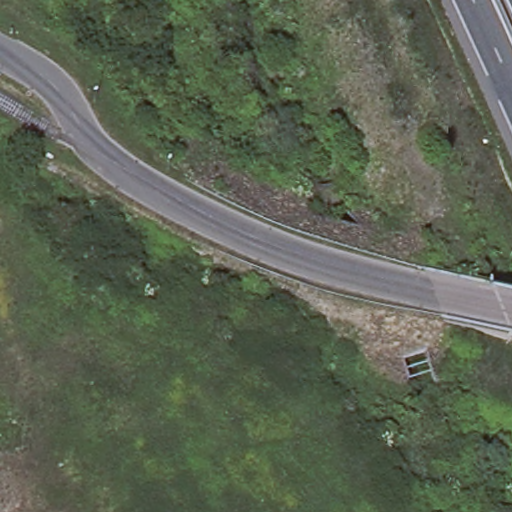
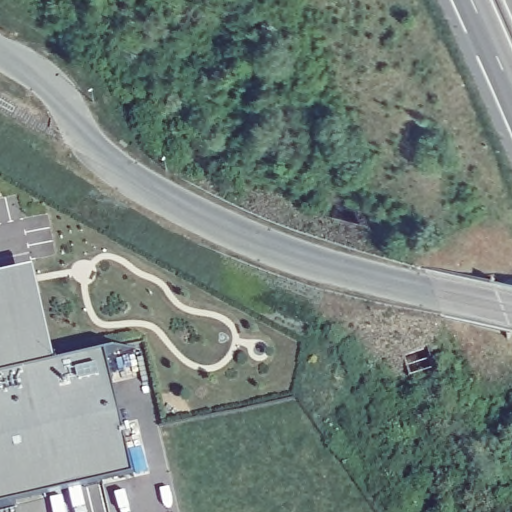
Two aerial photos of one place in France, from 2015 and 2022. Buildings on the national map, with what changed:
new [(55,364),(106,352),(134,477),(0,508),(0,277),(33,269),(55,364)]

